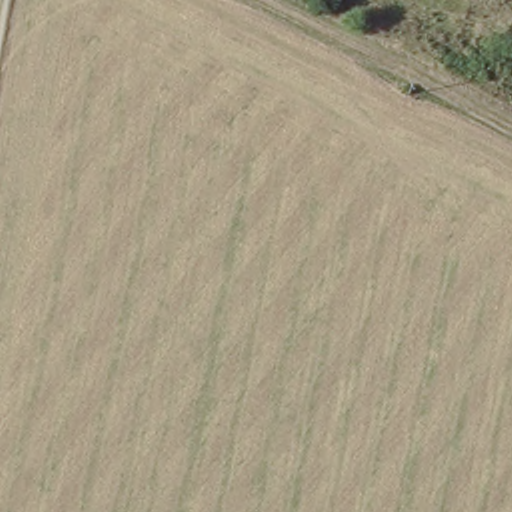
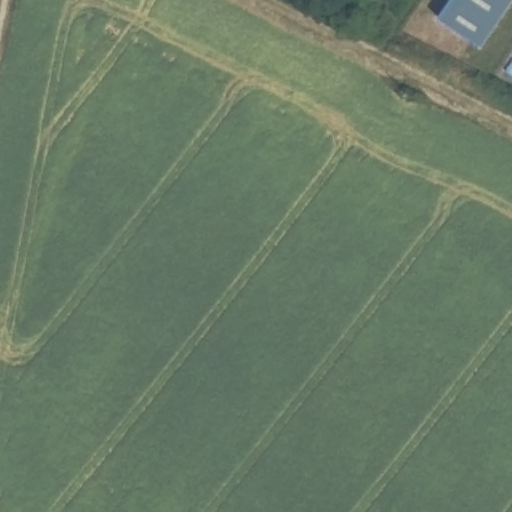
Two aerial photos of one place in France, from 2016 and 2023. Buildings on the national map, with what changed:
new [(482,47),(441,20),(455,0),(512,0),(512,2),(482,47)]

